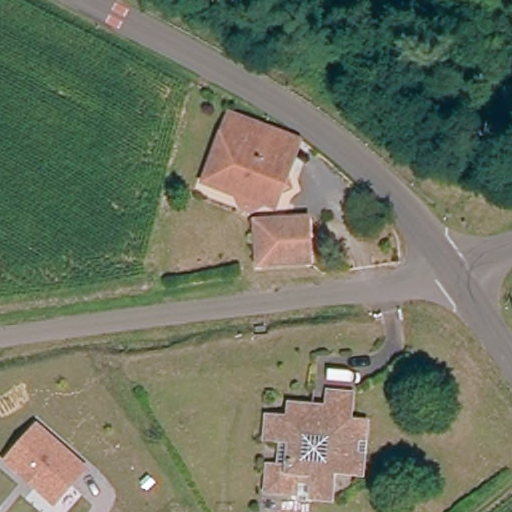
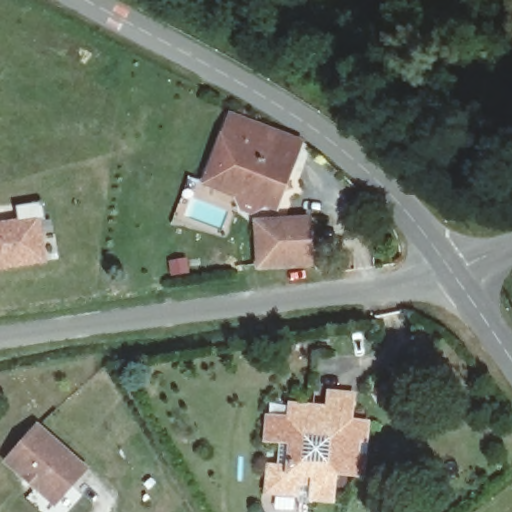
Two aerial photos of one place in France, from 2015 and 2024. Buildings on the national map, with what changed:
unchanged [(242,207),(239,206),(234,194),(204,181),(234,111),(268,125),(308,142),(298,163),(292,177),(296,188),(286,191),(277,212),(266,208),(256,213),(242,207)]
new [(17,206),(42,202),(45,219),(41,220),(47,263),(0,271),(0,222),(18,220),(17,206)]
unchanged [(256,226),(309,218),(315,260),(262,267),(256,226)]
unchanged [(262,335),(262,340),(252,341),(252,335),(262,335)]
unchanged [(362,477),(338,473),(335,502),(312,499),(311,504),(297,502),(298,495),(267,491),(271,464),(279,465),(282,444),(266,441),(269,418),(290,420),(292,404),(313,407),(312,418),(327,420),(333,390),(358,395),(353,424),(371,427),(362,477)]
unchanged [(2,462),(35,425),(84,468),(52,505),(2,462)]

